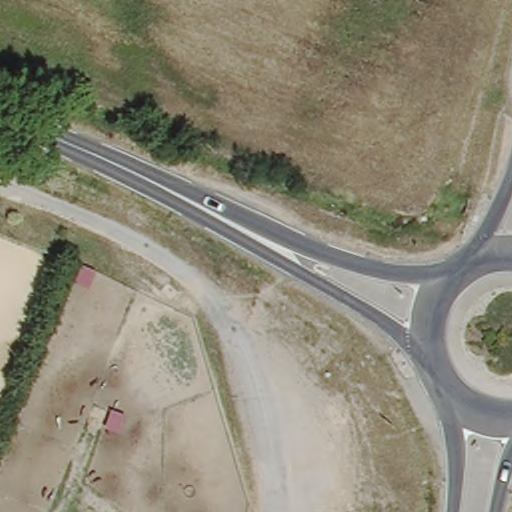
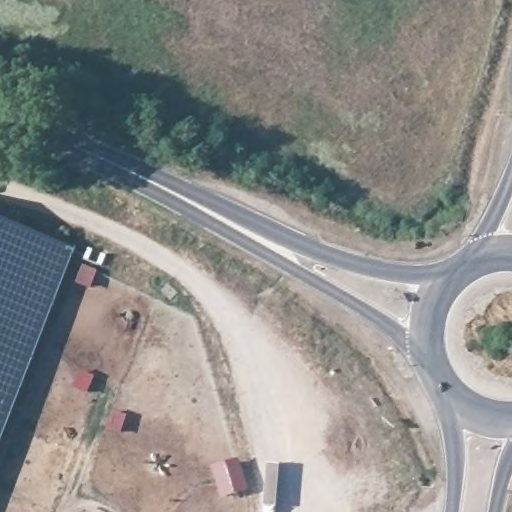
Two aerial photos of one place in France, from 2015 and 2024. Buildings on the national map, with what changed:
new [(76,249),(0,445),(0,219),(76,249)]

